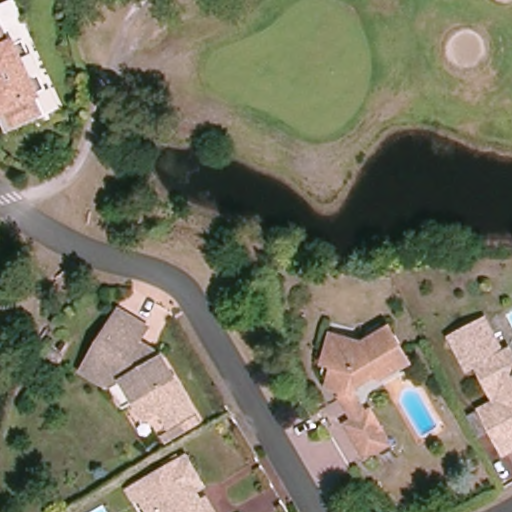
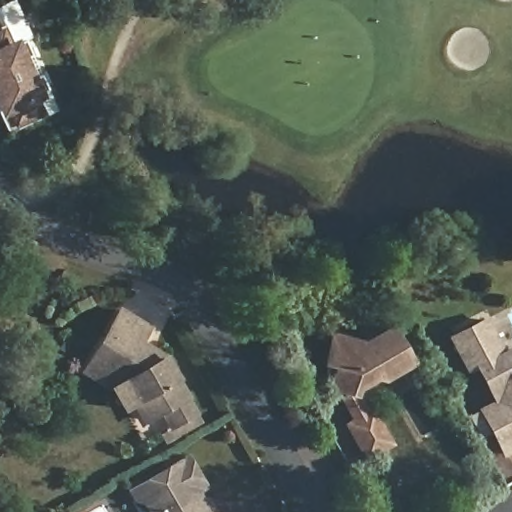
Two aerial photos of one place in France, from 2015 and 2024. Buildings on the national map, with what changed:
unchanged [(50,89),(35,95),(45,115),(9,132),(0,114),(0,112),(3,111),(0,105),(0,27),(2,26),(12,49),(27,42),(50,89)]
unchanged [(159,361),(165,357),(188,396),(185,398),(195,413),(170,427),(161,412),(145,421),(122,383),(114,388),(84,371),(121,311),(149,327),(137,347),(159,361)]
unchanged [(482,404),(497,396),(478,359),(468,364),(452,332),(486,315),(503,349),(512,351),(512,445),(505,449),(482,404)]
unchanged [(406,358),(379,373),(372,371),(351,383),(350,389),(356,400),(345,407),(331,384),(326,383),(325,381),(330,359),(321,357),(328,330),(360,338),(385,324),(406,358)]
unchanged [(385,438),(362,452),(343,421),(366,407),(385,438)]
unchanged [(198,494),(207,510),(212,507),(215,512),(150,512),(144,500),(135,498),(130,490),(187,457),(206,489),(198,494)]

